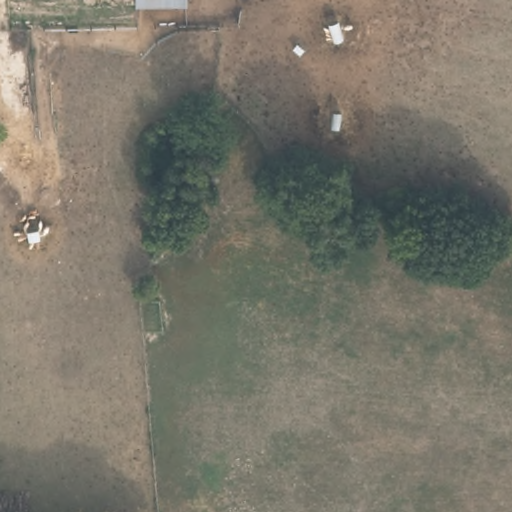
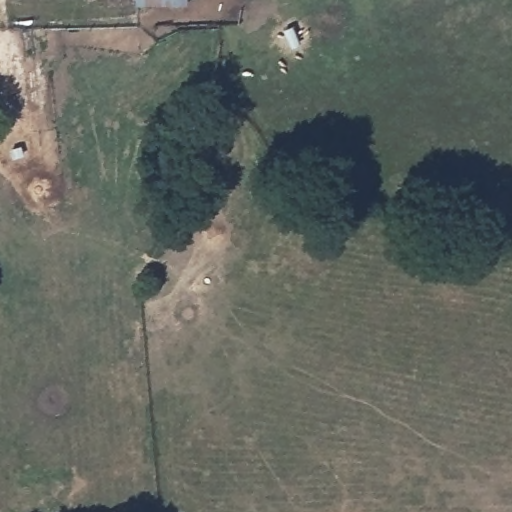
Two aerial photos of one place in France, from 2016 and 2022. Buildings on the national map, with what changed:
unchanged [(134,5),(134,0),(188,0),(188,4),(134,5)]

